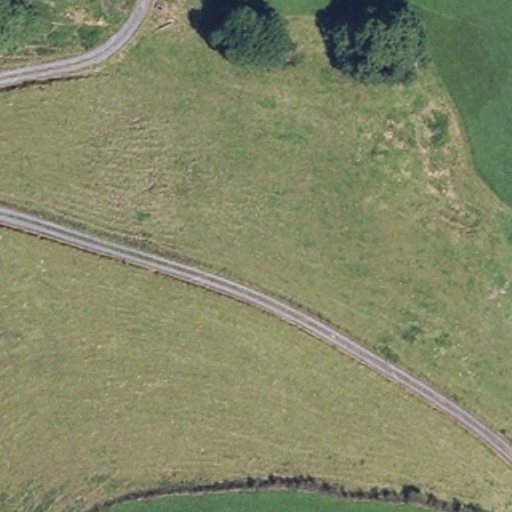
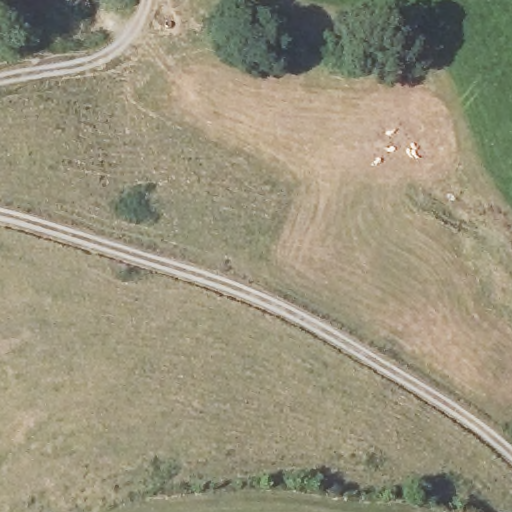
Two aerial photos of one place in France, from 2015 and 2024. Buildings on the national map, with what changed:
[]

